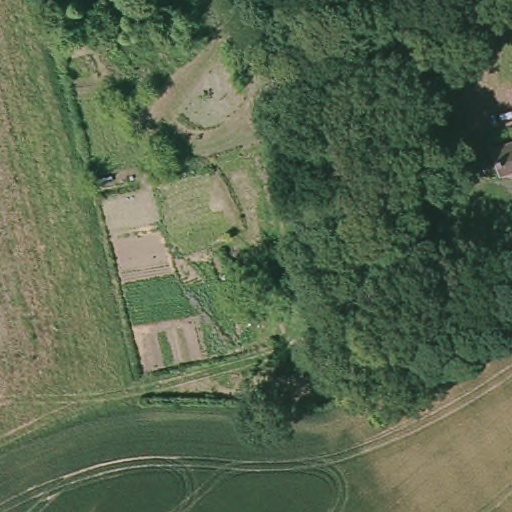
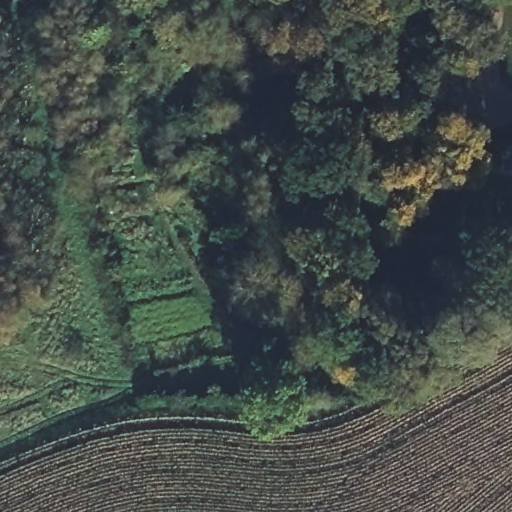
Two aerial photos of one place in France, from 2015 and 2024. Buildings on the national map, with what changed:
unchanged [(498,165),(487,167),(485,154),(495,152),(494,145),(512,141),(512,167),(500,170),(498,165)]

